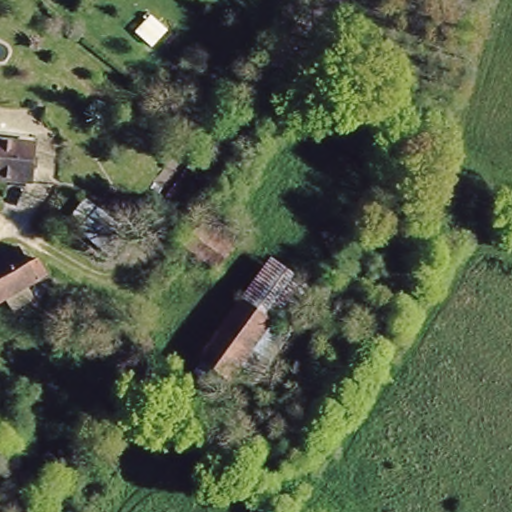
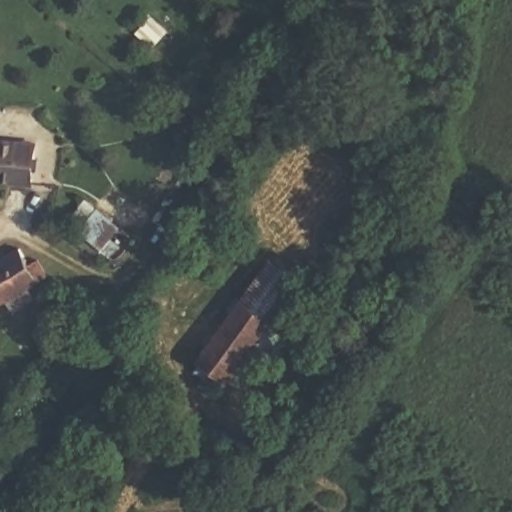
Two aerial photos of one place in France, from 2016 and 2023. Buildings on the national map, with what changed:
unchanged [(0,137),(12,138),(16,124),(36,126),(31,175),(9,170),(5,189),(0,188),(0,137)]
unchanged [(95,249),(77,226),(96,208),(115,230),(95,249)]
unchanged [(180,250),(199,222),(232,245),(213,273),(180,250)]
unchanged [(15,266),(36,258),(52,285),(6,311),(0,315),(0,255),(7,251),(15,266)]
unchanged [(243,287),(276,309),(260,334),(271,343),(255,368),(238,360),(228,375),(199,355),(243,287)]

